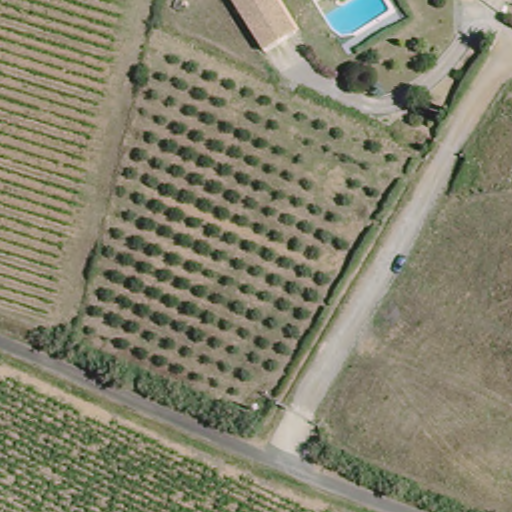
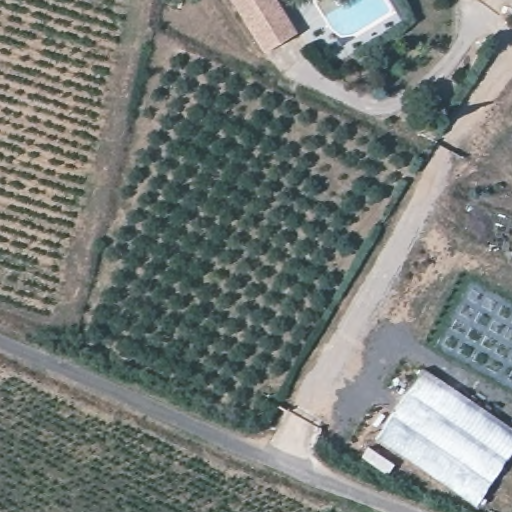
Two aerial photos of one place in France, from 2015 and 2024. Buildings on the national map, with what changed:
unchanged [(235,0),(277,0),(291,25),(258,42),(235,0)]
new [(512,428),(512,451),(475,508),(375,438),(421,368),(512,428)]

